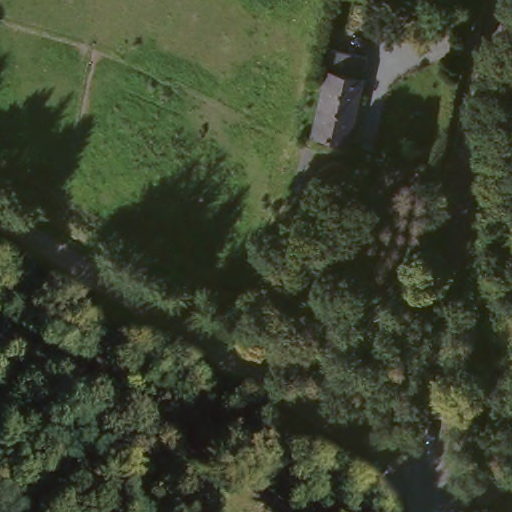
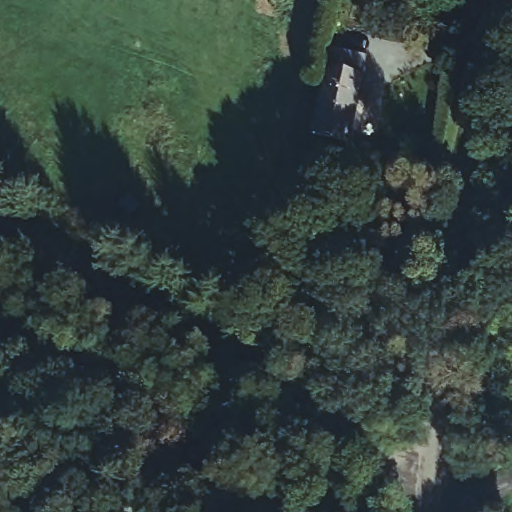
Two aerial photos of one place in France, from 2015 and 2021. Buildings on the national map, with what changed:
unchanged [(353,144),(313,136),(329,50),(368,58),(353,144)]

